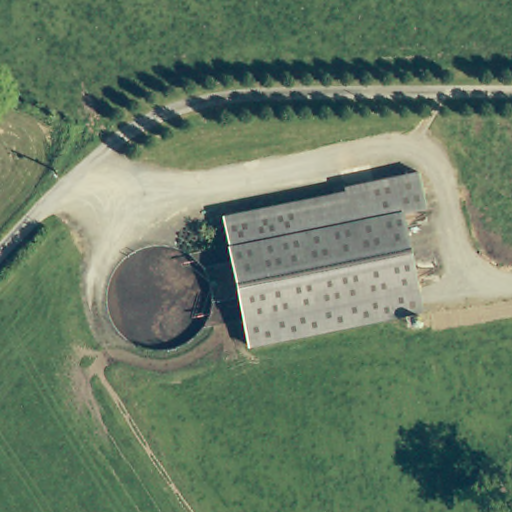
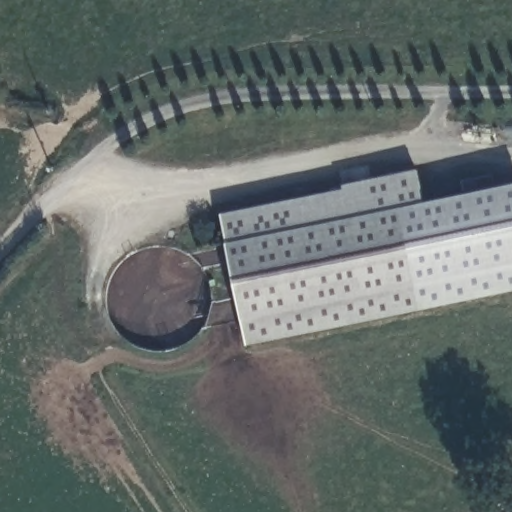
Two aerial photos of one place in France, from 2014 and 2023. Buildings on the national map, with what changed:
unchanged [(346,194),(344,189),(408,175),(419,173),(426,207),(411,211),(402,212),(415,276),(423,310),(418,311),(250,346),(223,219),(346,194)]
new [(415,276),(402,212),(411,211),(426,207),(425,203),(512,185),(512,295),(423,310),(415,276)]

